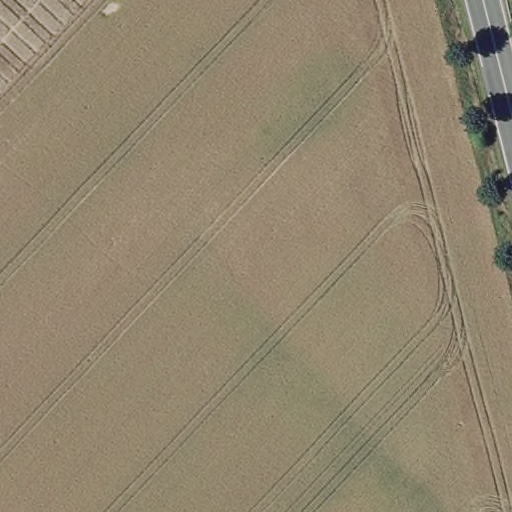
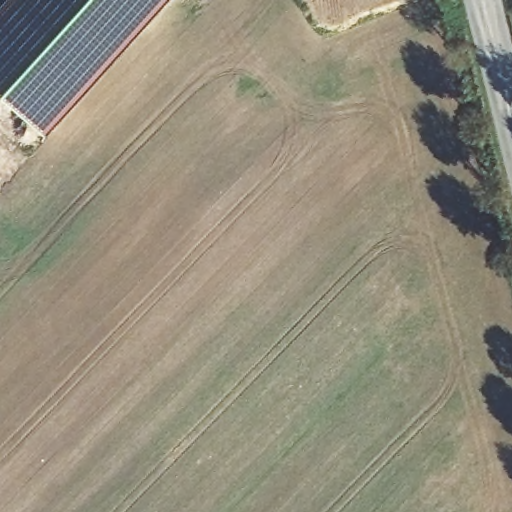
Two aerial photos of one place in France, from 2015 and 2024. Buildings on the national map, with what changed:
new [(43,133),(0,93),(0,7),(6,0),(167,0),(43,133)]

